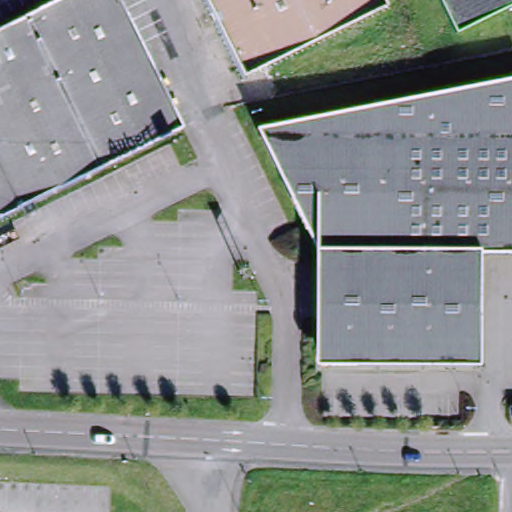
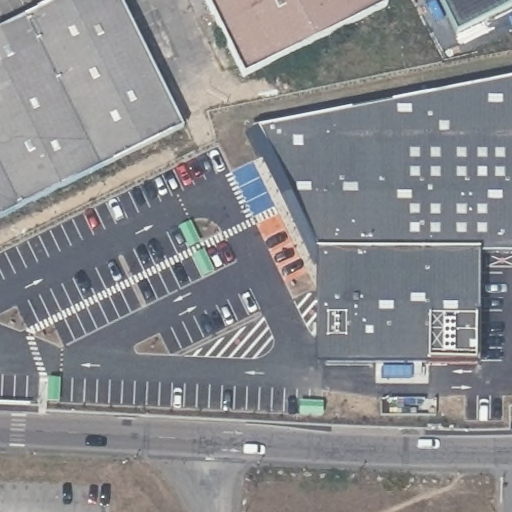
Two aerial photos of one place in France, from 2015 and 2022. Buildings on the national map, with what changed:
unchanged [(0,220),(0,31),(62,0),(119,0),(183,130),(0,220)]
unchanged [(206,0),(385,0),(386,4),(243,75),(206,0)]
unchanged [(442,0),(512,0),(512,3),(457,30),(442,0)]
unchanged [(320,267),(318,248),(261,131),(512,81),(512,256),(482,256),(482,367),(329,366),(319,366),(320,267)]

